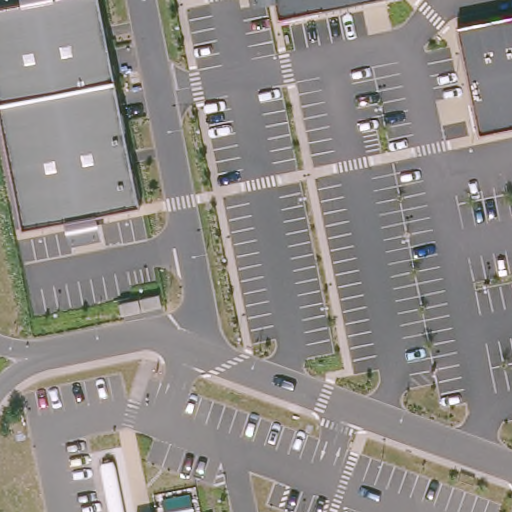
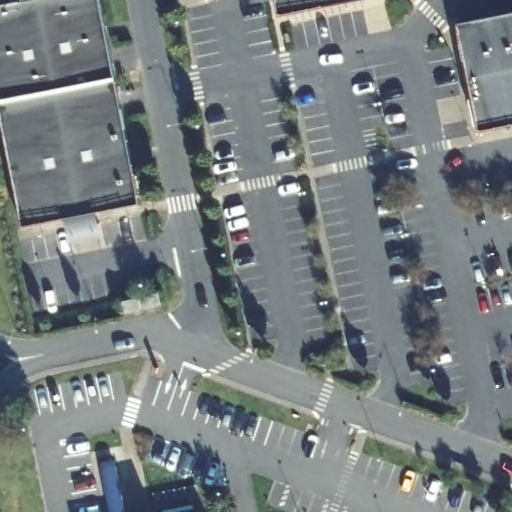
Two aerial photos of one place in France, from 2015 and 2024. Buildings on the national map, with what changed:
unchanged [(67,219),(24,228),(0,106),(0,6),(24,1),(24,0),(100,0),(141,205),(98,214),(102,237),(72,244),(67,219)]
unchanged [(251,0),(266,0),(251,2),(251,0)]
unchanged [(278,0),(367,0),(281,18),(278,0)]
unchanged [(480,132),(460,24),(512,14),(512,125),(480,132)]
unchanged [(97,458),(116,454),(127,512),(108,512),(97,458)]

